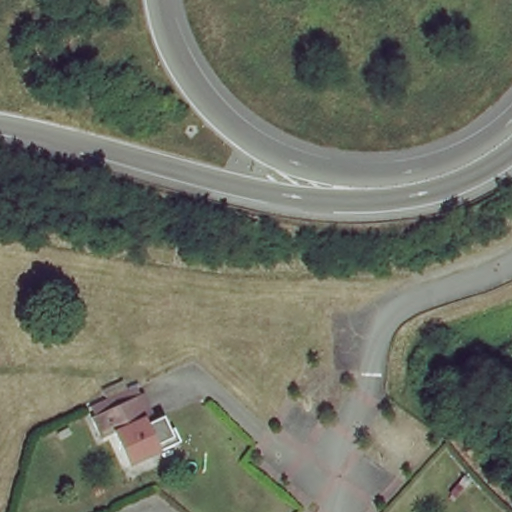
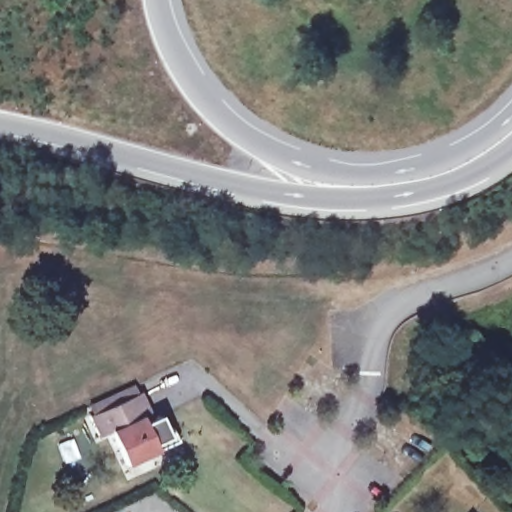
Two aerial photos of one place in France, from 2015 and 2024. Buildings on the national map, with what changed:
unchanged [(171,439),(156,445),(158,451),(127,465),(111,432),(100,438),(90,416),(131,398),(141,393),(153,420),(161,417),(171,439)]

